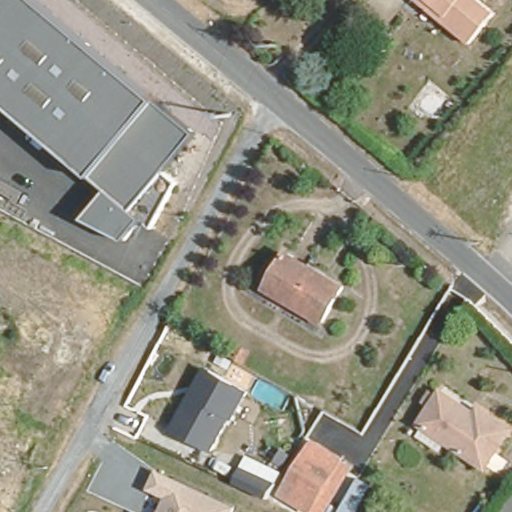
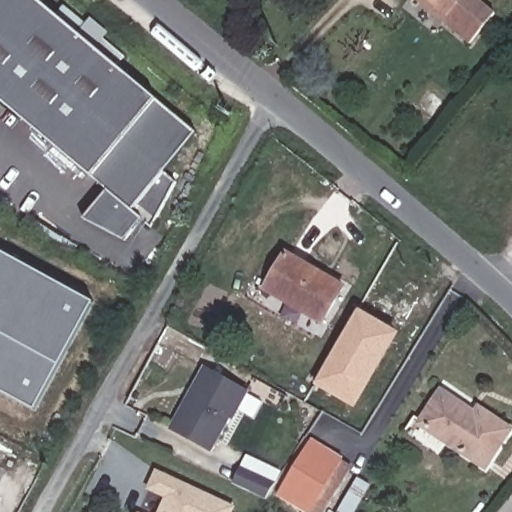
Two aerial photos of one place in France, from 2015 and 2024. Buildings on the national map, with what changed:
unchanged [(175,182),(153,229),(142,219),(125,240),(84,222),(108,190),(0,100),(0,0),(38,0),(197,134),(164,173),(175,182)]
unchanged [(470,41),(441,17),(420,0),(483,0),(496,10),(470,41)]
new [(90,296),(30,404),(0,386),(0,245),(90,296)]
unchanged [(267,287),(285,254),(321,272),(341,282),(323,315),(302,304),(267,287)]
new [(359,309),(401,334),(355,409),(314,385),(359,309)]
unchanged [(230,419),(212,453),(170,431),(190,394),(204,368),(249,392),(233,420),(230,419)]
unchanged [(475,467),(412,415),(443,381),(472,407),(478,400),(509,427),(475,467)]
unchanged [(313,502),(306,510),(280,494),(315,439),(341,454),(337,461),(351,469),(327,509),(313,502)]
new [(266,502),(231,486),(246,454),(282,471),(266,502)]
unchanged [(237,512),(158,512),(163,499),(145,491),(155,471),(239,508),(237,512)]
unchanged [(359,512),(338,512),(357,479),(372,489),(359,512)]
unchanged [(512,499),(512,512),(501,512),(512,499)]
unchanged [(0,511),(0,503),(3,505),(0,511)]

